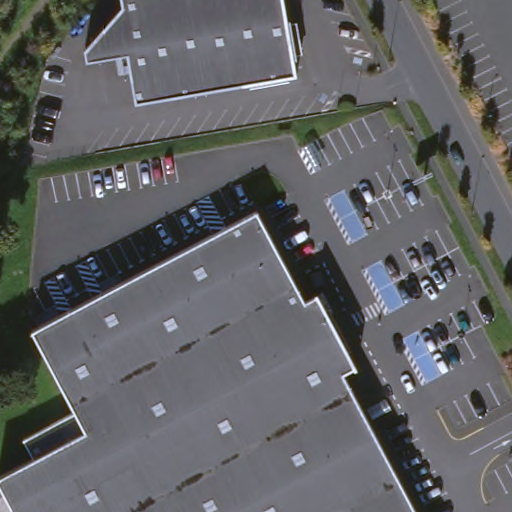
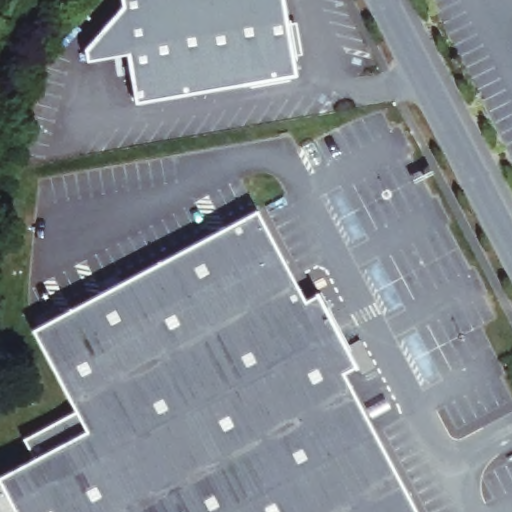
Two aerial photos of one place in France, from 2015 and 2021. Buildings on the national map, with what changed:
unchanged [(296,75),(139,101),(131,52),(85,60),(123,5),(122,0),(283,0),(296,75)]
unchanged [(320,292),(359,367),(346,374),(418,512),(19,512),(0,476),(0,475),(36,456),(27,437),(79,410),(36,328),(261,211),(307,300),(320,292)]

